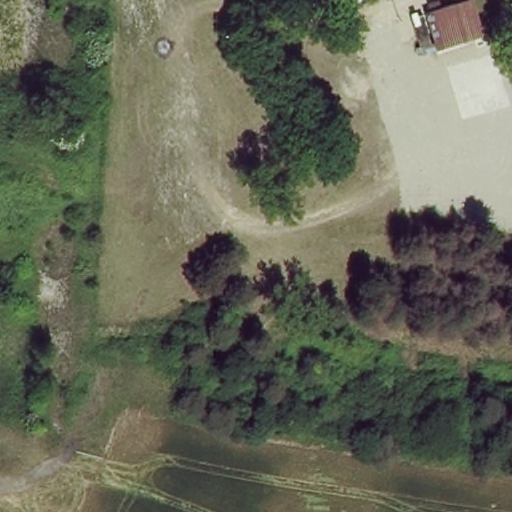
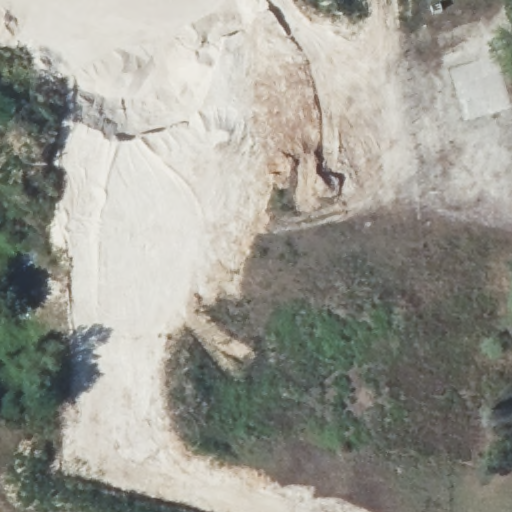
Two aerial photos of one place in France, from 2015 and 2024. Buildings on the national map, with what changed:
demolished [(430,13),(462,0),(475,0),(483,37),(439,50),(430,13)]

